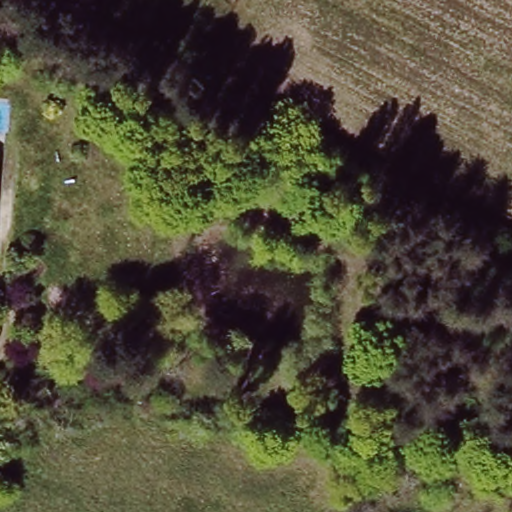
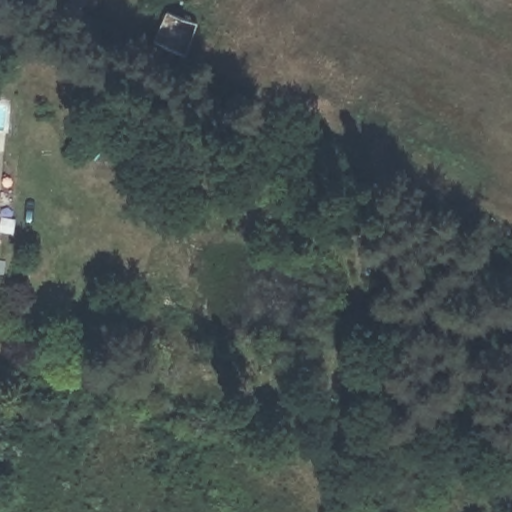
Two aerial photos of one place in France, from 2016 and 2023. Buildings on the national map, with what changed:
unchanged [(64,335),(61,365),(47,365),(49,333),(64,335)]

